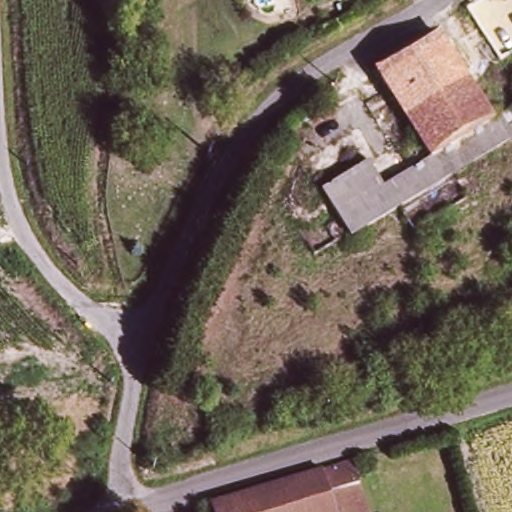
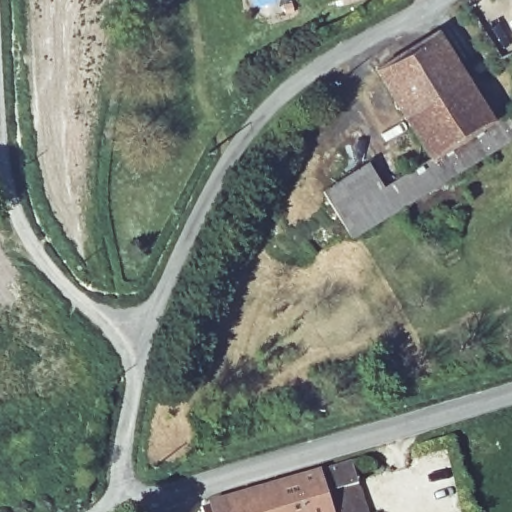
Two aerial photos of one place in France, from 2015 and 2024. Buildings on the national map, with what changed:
unchanged [(405,124),(376,79),(436,41),(465,85),(405,124)]
unchanged [(465,85),(492,127),(463,145),(430,165),(405,124),(465,85)]
unchanged [(463,145),(512,116),(512,148),(350,248),(320,200),(368,170),(382,194),(405,182),(430,165),(463,145)]
unchanged [(369,512),(331,512),(321,479),(355,469),(369,512)]
unchanged [(219,508),(321,479),(331,512),(220,512),(219,508)]

